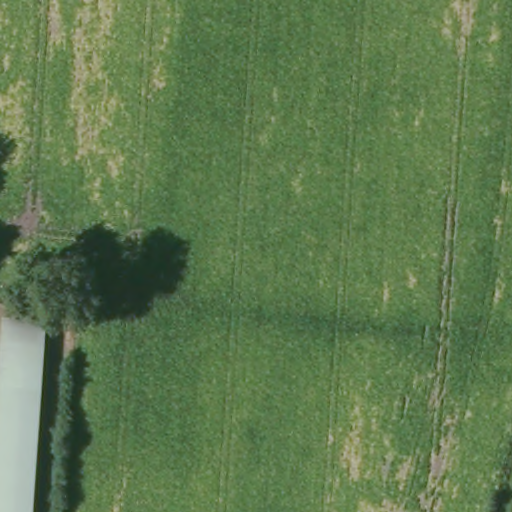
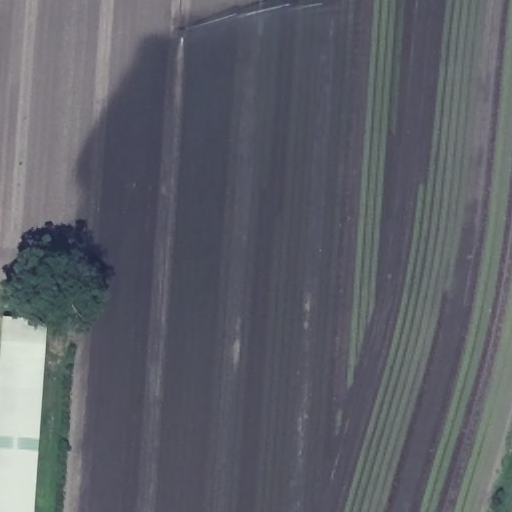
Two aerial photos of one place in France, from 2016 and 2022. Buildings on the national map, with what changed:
unchanged [(31,512),(0,512),(0,346),(2,322),(42,325),(31,512)]

